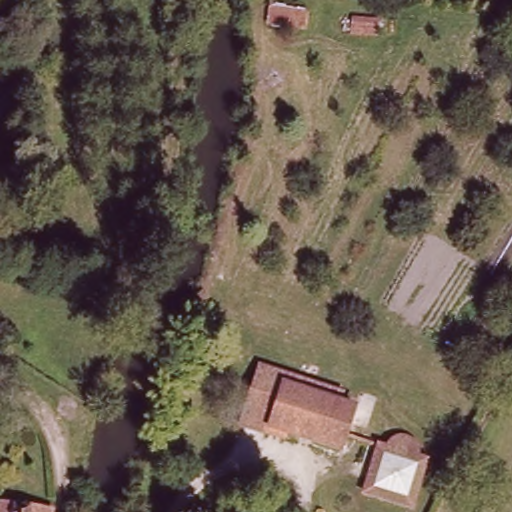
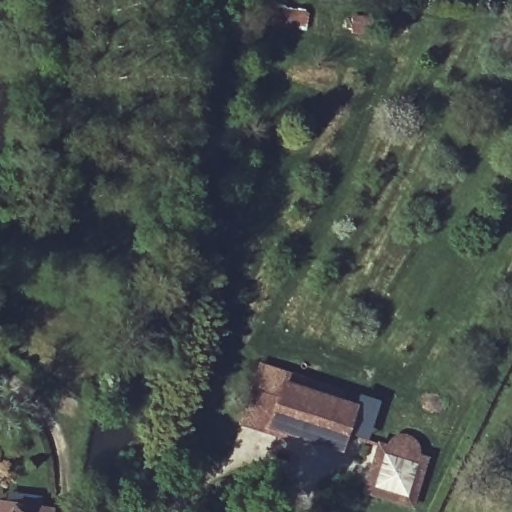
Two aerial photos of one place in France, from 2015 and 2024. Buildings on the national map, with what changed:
unchanged [(337,399),(353,404),(336,455),(264,431),(235,423),(253,364),(341,389),(337,399)]
unchanged [(387,445),(390,441),(395,437),(401,435),(408,436),(415,440),(418,446),(420,454),(430,458),(415,509),(360,494),(375,443),(387,445)]
unchanged [(0,512),(1,501),(49,507),(48,512),(0,512)]

